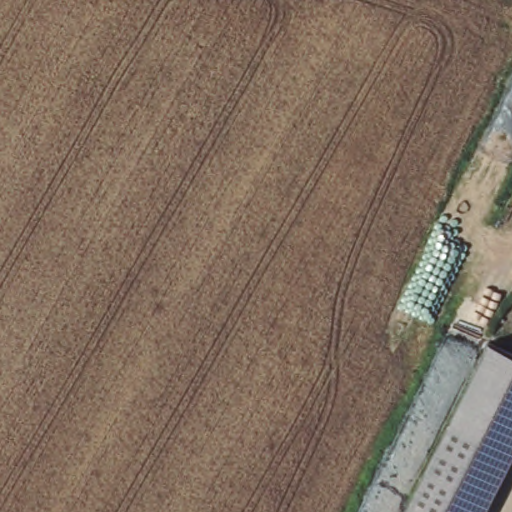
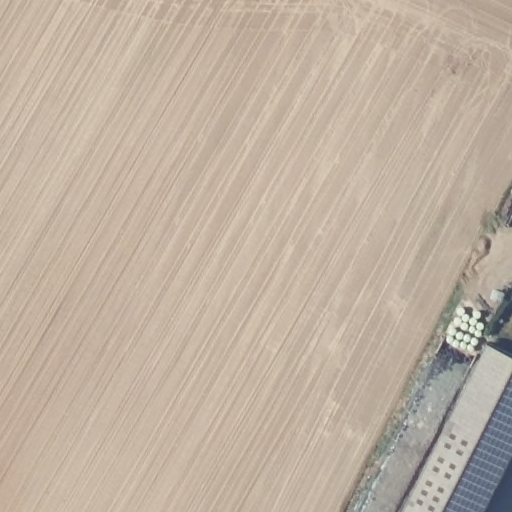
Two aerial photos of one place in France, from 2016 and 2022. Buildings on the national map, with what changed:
unchanged [(486,345),(512,357),(512,454),(482,512),(402,512),(478,362),(486,345)]

